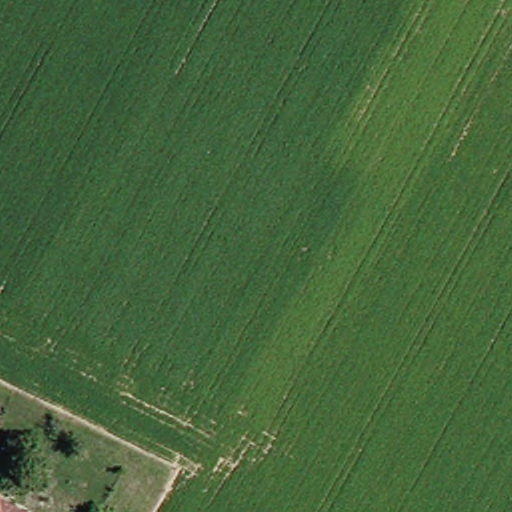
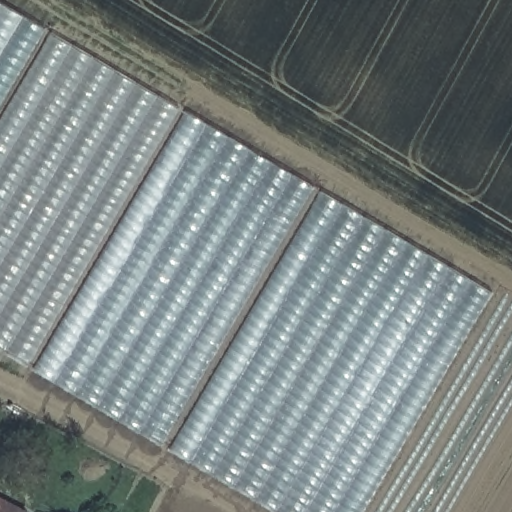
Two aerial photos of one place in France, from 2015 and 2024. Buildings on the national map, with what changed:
new [(175,106),(22,364),(0,351),(0,3),(175,106)]
new [(364,512),(281,512),(22,364),(175,106),(493,291),(364,512)]
unchanged [(32,511),(32,512),(0,512),(0,491),(32,511)]

